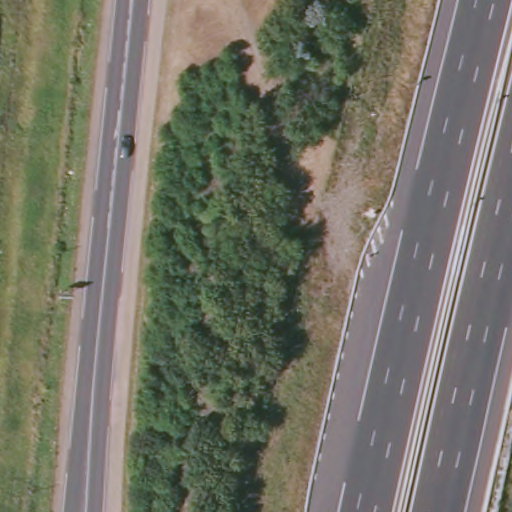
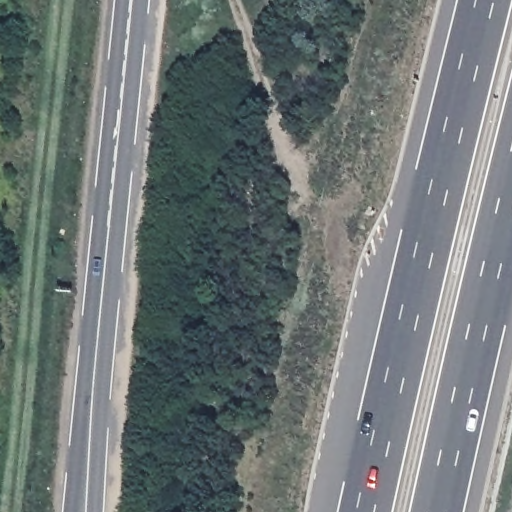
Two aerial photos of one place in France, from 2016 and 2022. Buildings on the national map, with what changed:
[]

